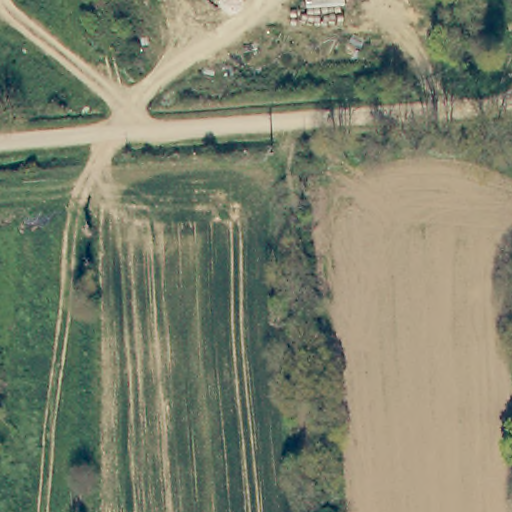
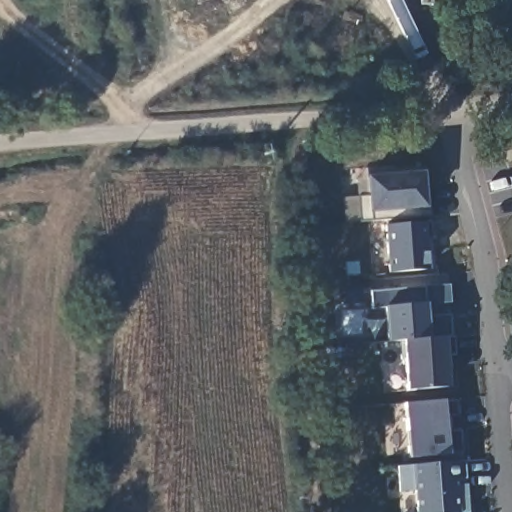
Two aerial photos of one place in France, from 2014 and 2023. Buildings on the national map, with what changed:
new [(360,225),(357,197),(367,197),(365,176),(424,170),(424,175),(426,173),(430,215),(360,225)]
new [(386,224),(431,220),(432,237),(426,237),(428,268),(390,271),(386,224)]
new [(450,302),(427,304),(428,317),(450,315),(450,337),(453,337),(455,353),(445,355),(448,385),(407,390),(405,340),(390,341),(386,307),(372,308),(371,302),(348,303),(348,290),(369,288),(370,291),(425,287),(449,285),(450,302)]
new [(460,415),(445,416),(446,431),(460,430),(463,452),(450,455),(409,458),(405,403),(445,401),(458,400),(460,415)]
new [(465,478),(456,479),(459,512),(418,512),(413,466),(465,462),(465,478)]

